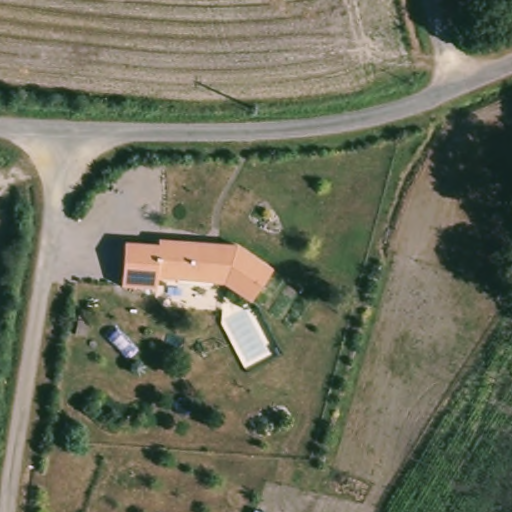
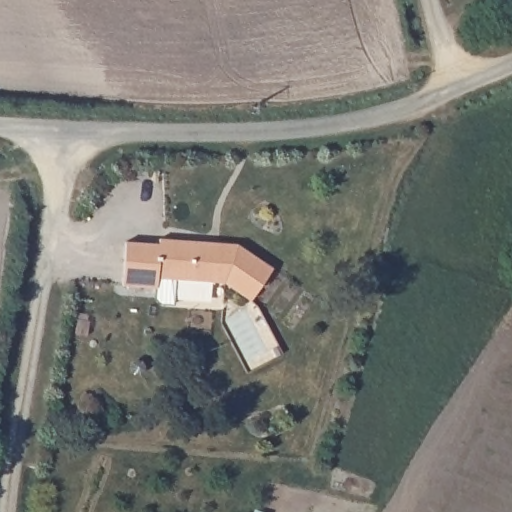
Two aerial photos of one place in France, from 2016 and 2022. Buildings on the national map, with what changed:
unchanged [(251,293),(222,279),(155,283),(156,293),(122,295),(119,251),(153,249),(153,244),(231,239),(269,259),(251,293)]

